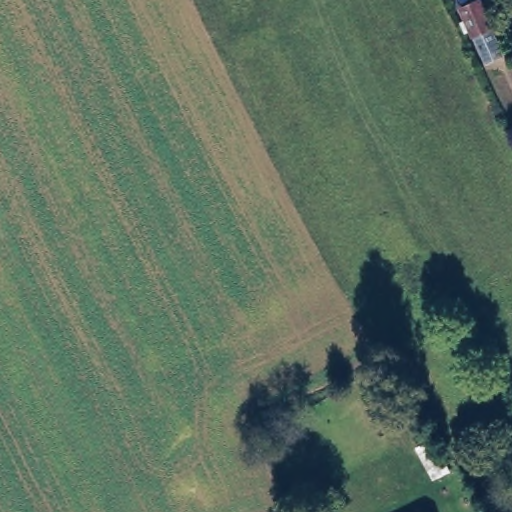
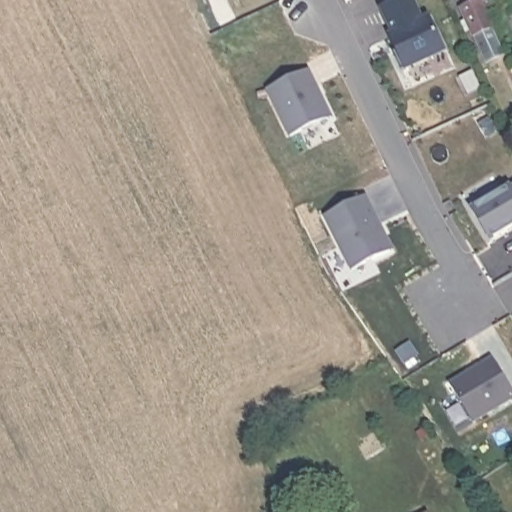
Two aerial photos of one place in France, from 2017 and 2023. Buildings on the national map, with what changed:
new [(396,36),(397,36),(383,9),(401,0),(412,0),(423,22),(430,19),(446,52),(402,72),(394,54),(397,52),(395,46),(399,44),(396,36)]
unchanged [(475,0),(476,0),(502,55),(487,62),(461,7),(475,0)]
new [(310,71),(317,87),(315,88),(320,97),(322,96),(332,118),(292,137),(270,90),(310,71)]
new [(491,241),(472,210),(512,185),(512,228),(491,241)]
new [(367,197),(380,224),(377,225),(391,251),(354,271),(327,217),(367,197)]
new [(469,372),(470,375),(479,370),(477,367),(492,358),(512,391),(512,399),(474,422),(450,383),(469,372)]

